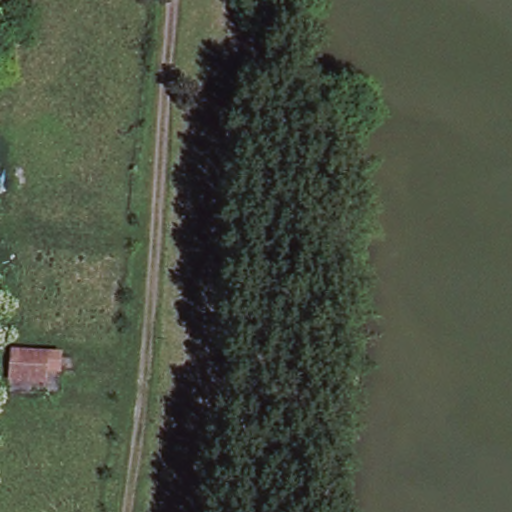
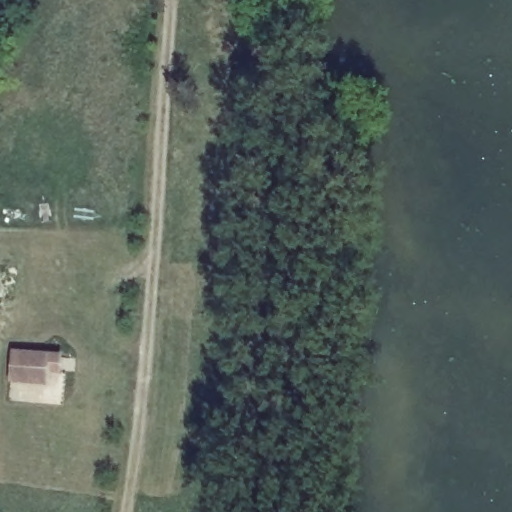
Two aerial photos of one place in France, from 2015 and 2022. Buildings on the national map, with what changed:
unchanged [(7,384),(8,352),(61,354),(60,375),(47,375),(45,385),(7,384)]

